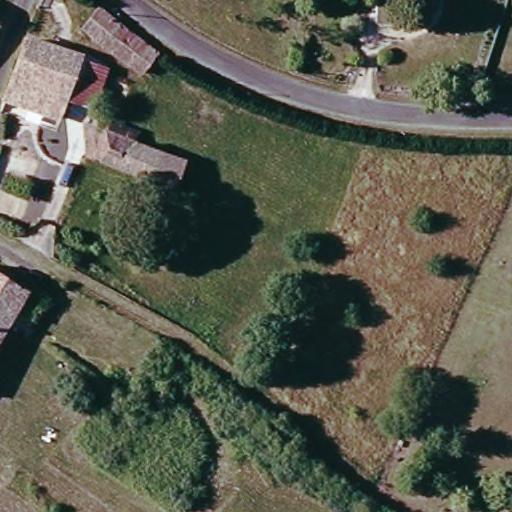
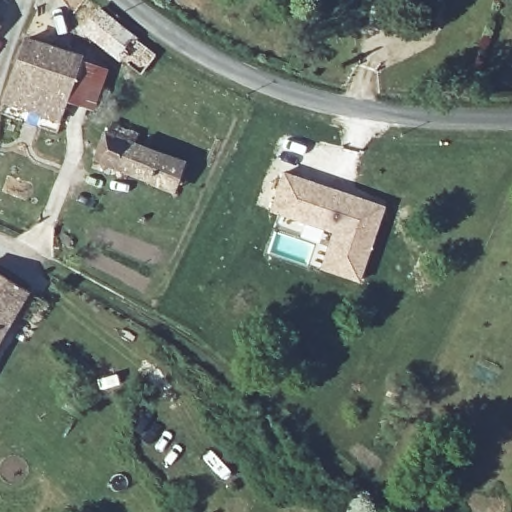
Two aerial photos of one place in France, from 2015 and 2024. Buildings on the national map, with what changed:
unchanged [(158,56),(142,75),(85,28),(101,9),(158,56)]
unchanged [(81,54),(65,102),(59,118),(5,101),(28,36),(81,54)]
unchanged [(81,54),(108,61),(91,111),(65,102),(81,54)]
unchanged [(148,181),(122,172),(94,161),(104,134),(158,153),(159,151),(184,161),(173,190),(148,181)]
new [(281,169),(386,205),(359,282),(317,267),(329,233),(268,210),(281,169)]
unchanged [(0,334),(0,275),(26,291),(0,334)]

